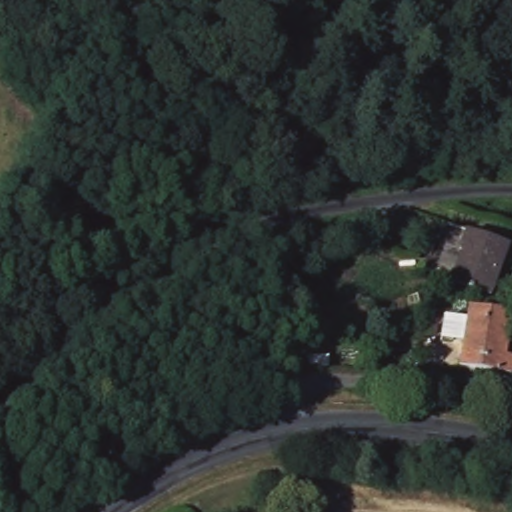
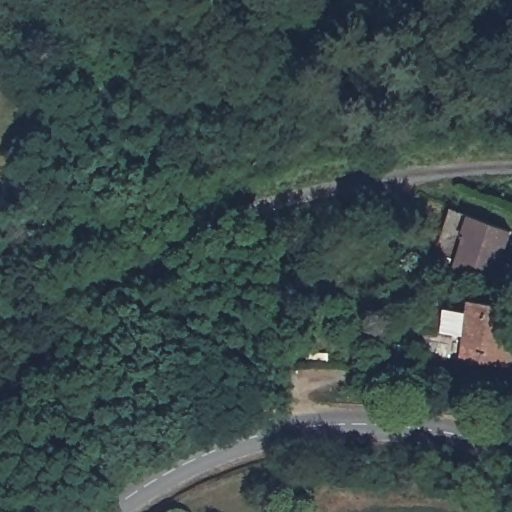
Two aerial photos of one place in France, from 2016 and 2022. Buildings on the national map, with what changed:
unchanged [(454,269),(466,236),(444,227),(451,209),(512,231),(494,283),(454,269)]
unchanged [(442,333),(446,309),(468,313),(471,301),(512,307),(512,319),(507,350),(512,351),(512,370),(460,361),(464,336),(442,333)]
unchanged [(328,355),(329,365),(308,366),(309,355),(328,355)]

